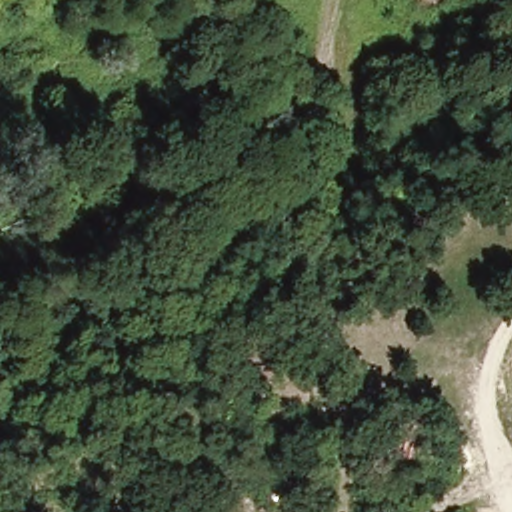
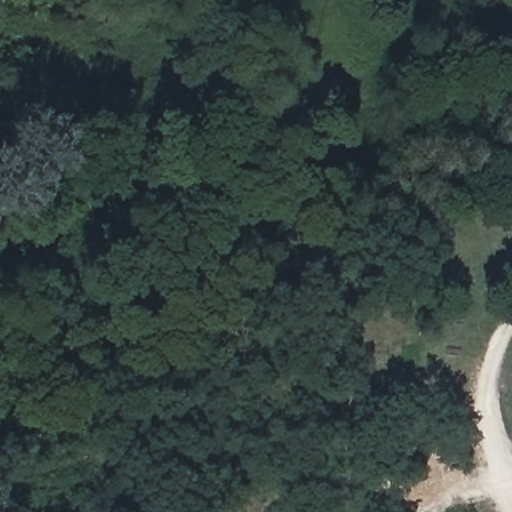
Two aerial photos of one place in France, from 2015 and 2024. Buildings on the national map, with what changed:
[]

